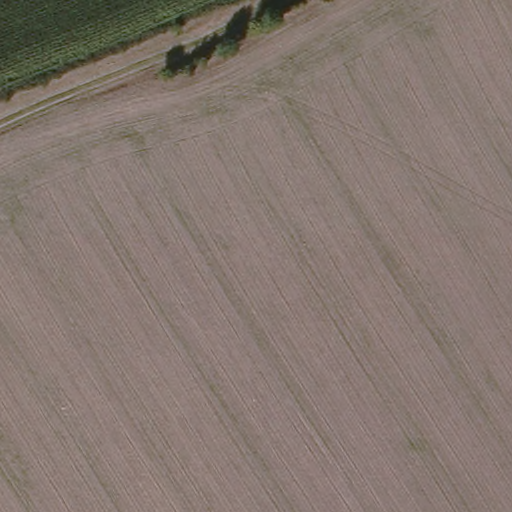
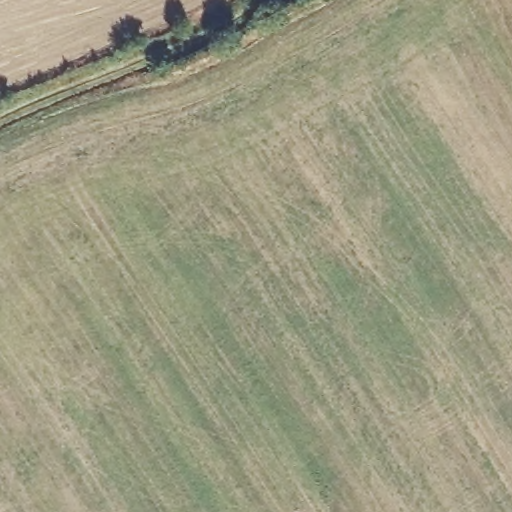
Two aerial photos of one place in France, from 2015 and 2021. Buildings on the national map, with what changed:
[]

